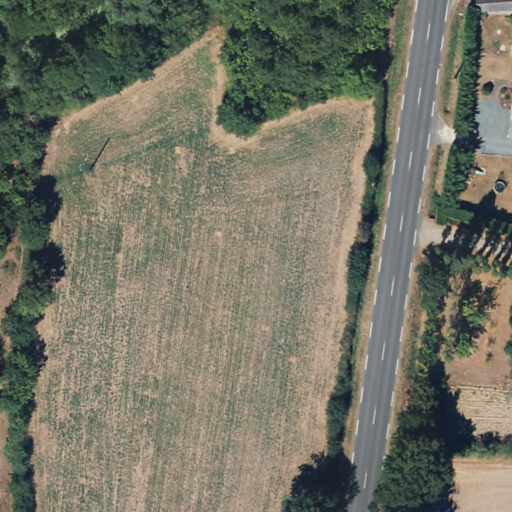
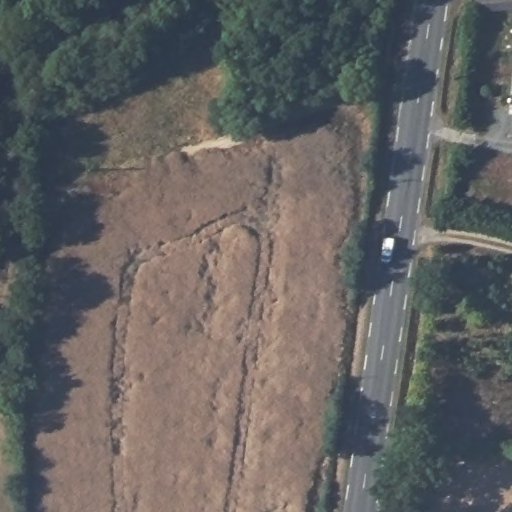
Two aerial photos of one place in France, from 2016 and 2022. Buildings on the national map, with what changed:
unchanged [(468,0),(512,0),(512,15),(465,15),(468,0)]
unchanged [(512,40),(512,59),(510,58),(512,40)]
unchanged [(512,139),(504,138),(510,58),(512,59),(512,139)]

